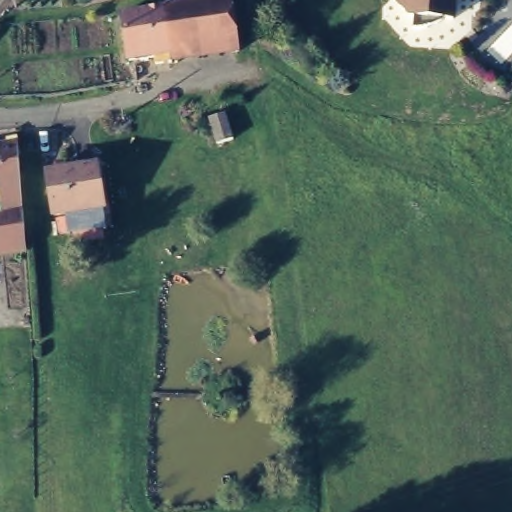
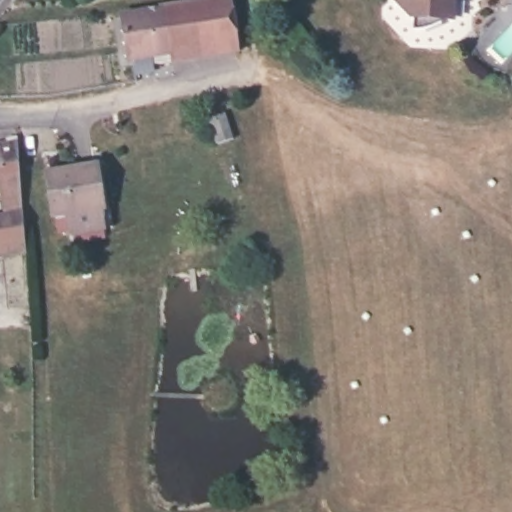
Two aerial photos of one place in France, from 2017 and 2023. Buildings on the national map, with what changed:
unchanged [(170,52),(171,60),(155,62),(155,55),(132,58),(129,58),(122,12),(163,6),(163,0),(189,0),(190,1),(201,0),(232,0),(237,41),(170,52)]
unchanged [(445,15),(442,16),(442,17),(440,18),(438,19),(436,20),(434,21),(432,22),(430,23),(428,23),(428,24),(426,24),(424,25),(423,25),(420,25),(418,26),(415,26),(413,26),(414,13),(411,13),(407,10),(399,0),(453,0),(453,15),(445,15)]
unchanged [(3,186),(0,186),(0,142),(15,139),(25,198),(6,202),(3,186)]
unchanged [(105,162),(113,205),(101,208),(65,216),(56,174),(105,162)]
unchanged [(0,213),(8,211),(6,202),(25,198),(25,242),(22,243),(23,249),(0,252),(0,213)]

